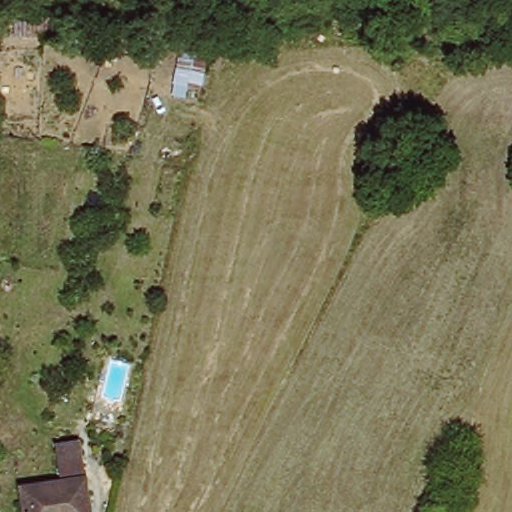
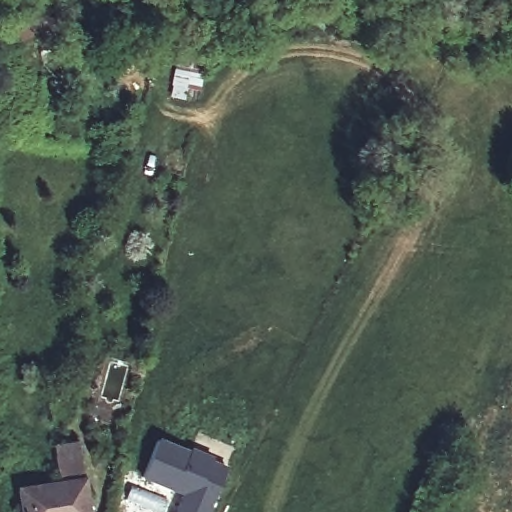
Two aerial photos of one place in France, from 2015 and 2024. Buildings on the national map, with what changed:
unchanged [(21,512),(15,475),(57,469),(50,431),(77,428),(88,508),(67,511),(68,512),(21,512)]
new [(189,448),(190,446),(230,464),(211,512),(170,512),(175,493),(140,477),(157,437),(189,448)]

